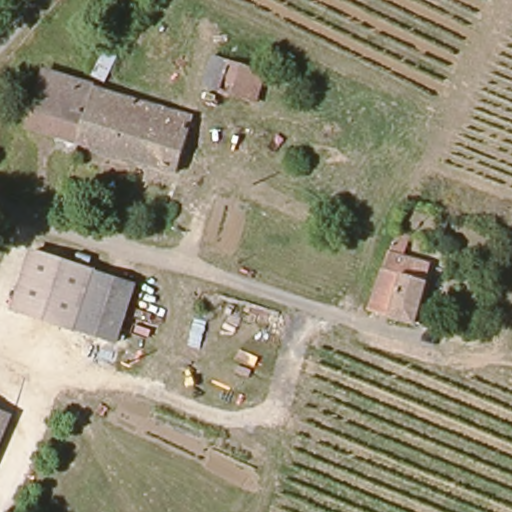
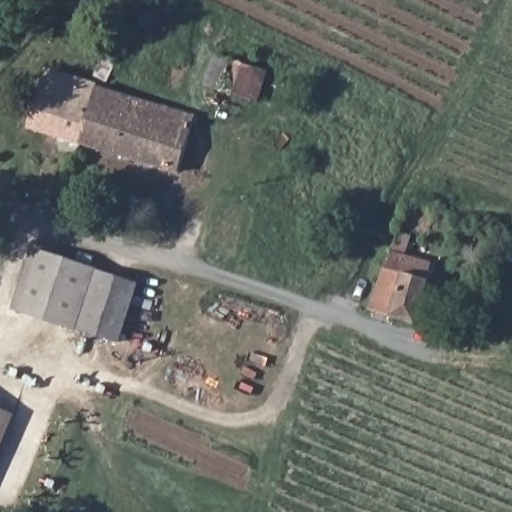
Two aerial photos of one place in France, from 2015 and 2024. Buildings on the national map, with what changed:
unchanged [(263,67),(253,102),(206,88),(217,53),(263,67)]
unchanged [(80,139),(27,124),(43,70),(92,84),(80,139)]
unchanged [(190,114),(176,167),(80,139),(92,84),(102,86),(190,114)]
unchanged [(368,309),(391,243),(434,258),(415,321),(368,309)]
unchanged [(96,273),(96,274),(135,288),(115,345),(76,331),(75,334),(14,312),(35,251),(96,273)]
unchanged [(11,415),(0,440),(0,410),(11,415)]

